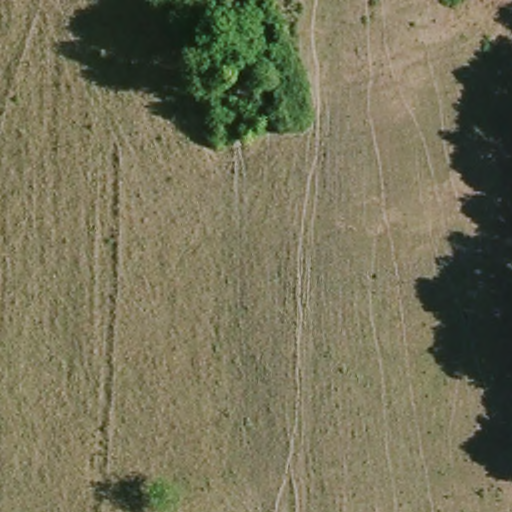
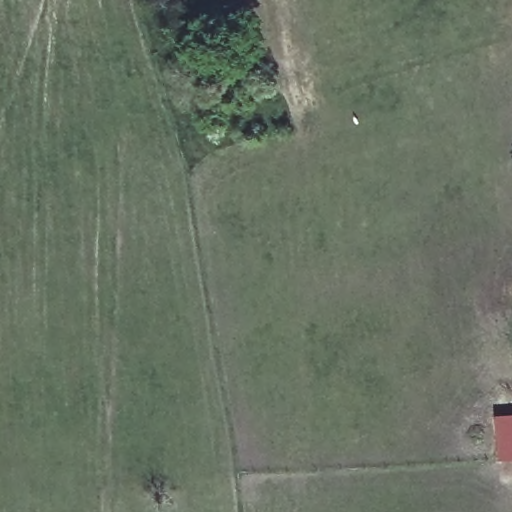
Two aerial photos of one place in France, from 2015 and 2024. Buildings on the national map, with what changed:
new [(512,413),(512,458),(501,460),(497,415),(512,413)]

